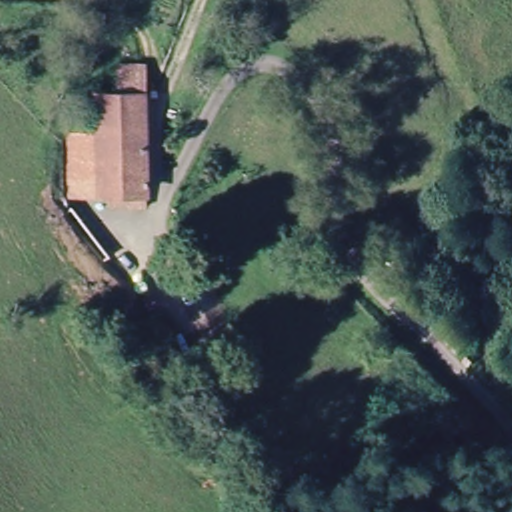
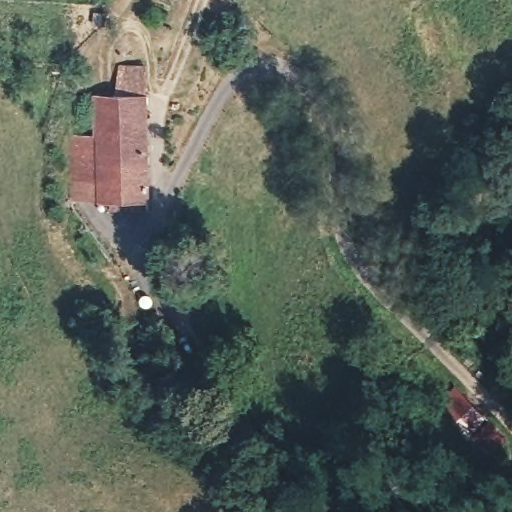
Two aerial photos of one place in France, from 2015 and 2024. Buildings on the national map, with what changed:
unchanged [(90,99),(117,98),(117,69),(146,68),(144,195),(90,198),(90,142),(90,99)]
unchanged [(90,198),(67,199),(68,143),(90,142),(90,198)]

